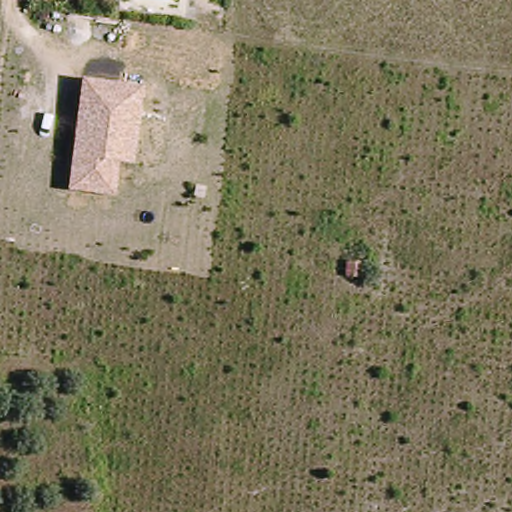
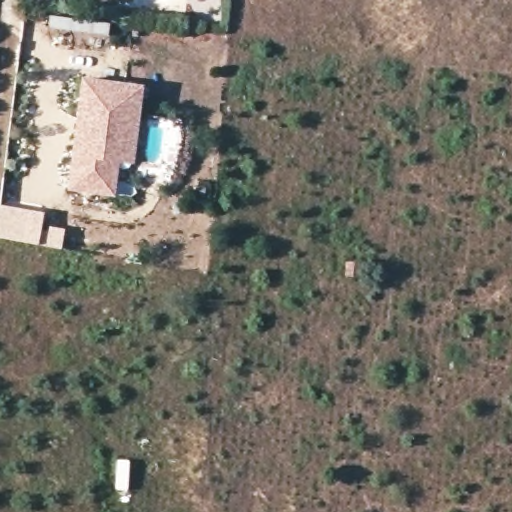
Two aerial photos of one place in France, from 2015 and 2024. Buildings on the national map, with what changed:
unchanged [(84,79),(145,87),(134,163),(119,161),(116,196),(70,189),(84,79)]
new [(45,213),(39,245),(0,238),(0,207),(1,205),(45,213)]
unchanged [(363,272),(363,288),(347,287),(347,271),(363,272)]

